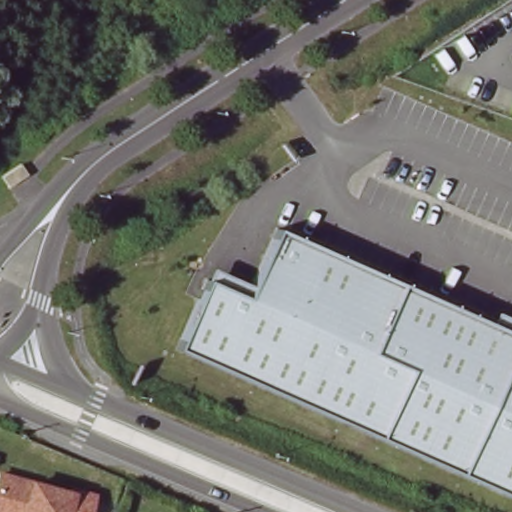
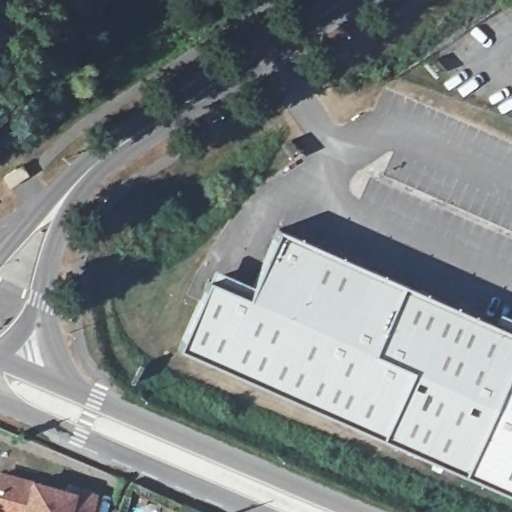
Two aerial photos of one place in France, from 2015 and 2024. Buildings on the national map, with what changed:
unchanged [(173,349),(211,262),(253,279),(278,225),(512,325),(512,498),(173,349)]
unchanged [(76,493),(78,488),(97,494),(92,512),(0,512),(0,472),(33,482),(76,493)]

